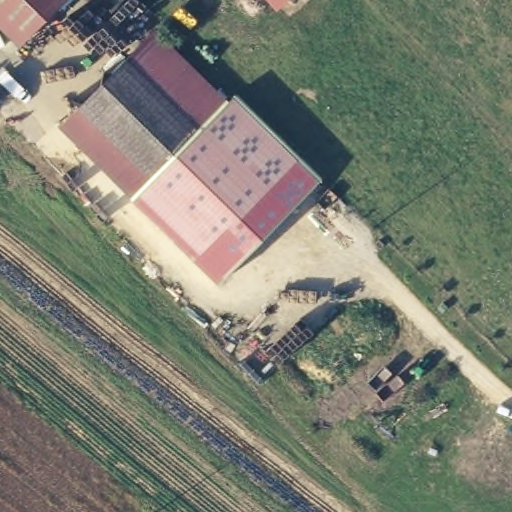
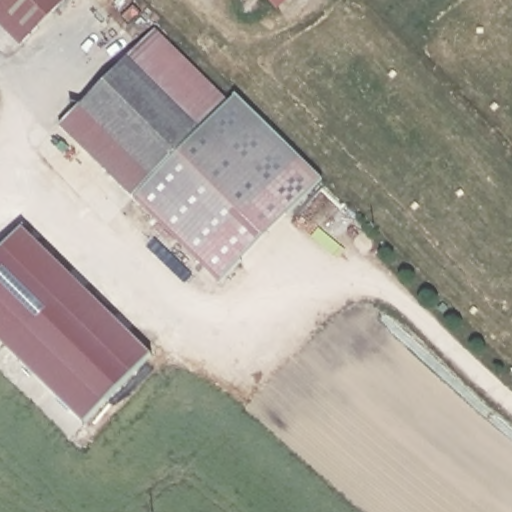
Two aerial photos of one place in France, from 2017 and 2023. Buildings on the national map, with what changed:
unchanged [(0,22),(0,0),(64,0),(22,45),(0,22)]
unchanged [(231,100),(140,193),(69,122),(160,30),(231,100)]
unchanged [(235,94),(322,179),(267,235),(220,283),(152,216),(78,144),(62,127),(69,122),(85,139),(140,193),(231,100),(235,94)]
new [(82,421),(0,341),(0,249),(22,227),(152,352),(82,421)]

